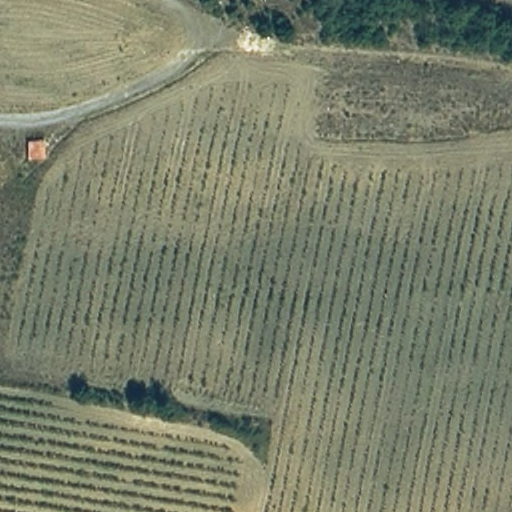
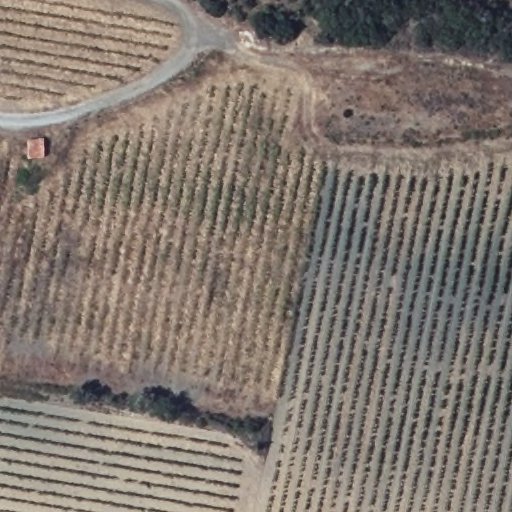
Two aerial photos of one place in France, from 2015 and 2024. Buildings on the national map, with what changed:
unchanged [(43,159),(25,158),(25,140),(43,138),(43,159)]

